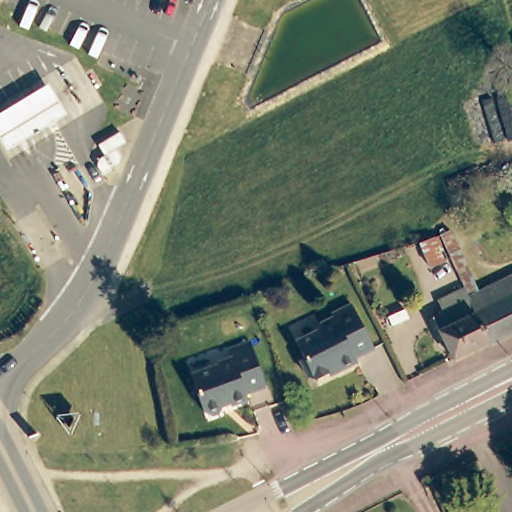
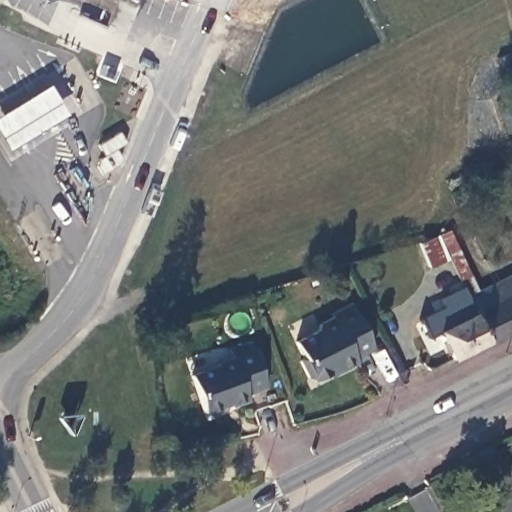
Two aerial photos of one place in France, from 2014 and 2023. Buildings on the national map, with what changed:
unchanged [(39,79),(55,109),(0,139),(0,102),(39,79)]
unchanged [(110,127),(116,139),(106,145),(110,153),(109,160),(95,167),(89,154),(94,151),(88,140),(110,127)]
unchanged [(436,241),(445,258),(429,267),(418,246),(436,241)]
unchanged [(429,318),(442,311),(436,299),(446,293),(435,271),(450,262),(462,285),(470,298),(469,303),(488,343),(448,361),(429,318)]
unchanged [(469,303),(470,298),(512,277),(512,333),(488,345),(488,343),(469,303)]
unchanged [(294,343),(350,311),(370,350),(316,380),(294,343)]
unchanged [(268,387),(247,395),(250,399),(232,405),(231,403),(225,405),(222,410),(212,413),(206,410),(193,374),(219,365),(219,362),(234,356),(230,347),(250,340),(268,387)]

